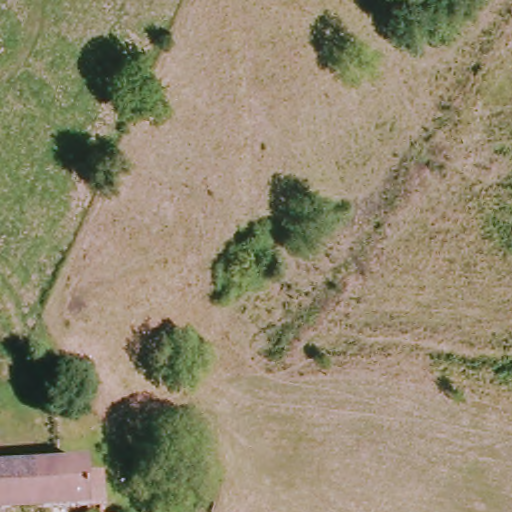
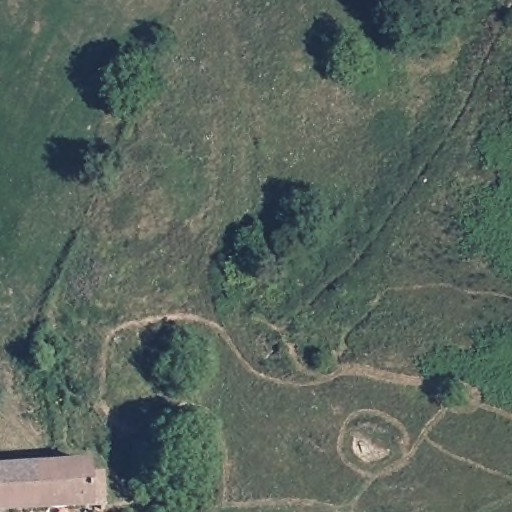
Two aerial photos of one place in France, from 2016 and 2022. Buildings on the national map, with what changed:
unchanged [(57,464),(63,463),(97,462),(96,472),(106,472),(105,512),(58,512),(57,464)]
unchanged [(57,464),(58,512),(0,512),(0,467),(57,464)]

